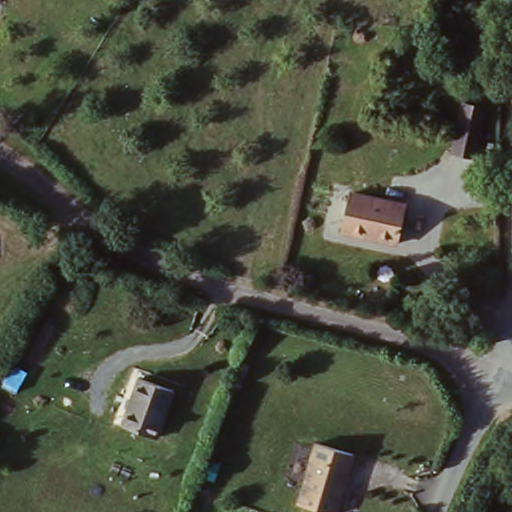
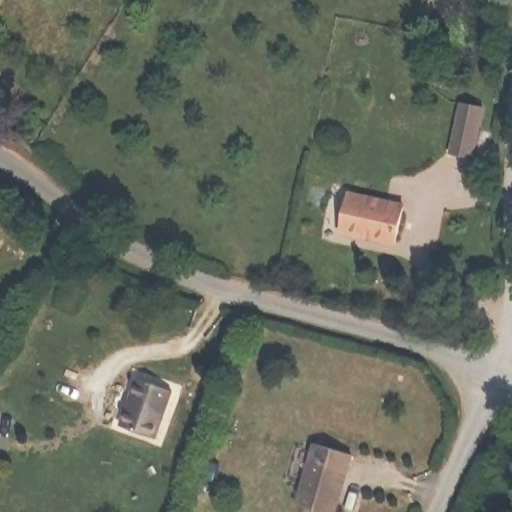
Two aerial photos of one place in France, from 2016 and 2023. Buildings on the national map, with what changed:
unchanged [(481,112),(470,158),(450,152),(460,107),(481,112)]
unchanged [(402,205),(392,242),(340,229),(350,192),(402,205)]
unchanged [(170,389),(154,436),(120,423),(136,377),(170,389)]
unchanged [(350,455),(333,512),(320,512),(295,504),(312,443),(350,455)]

